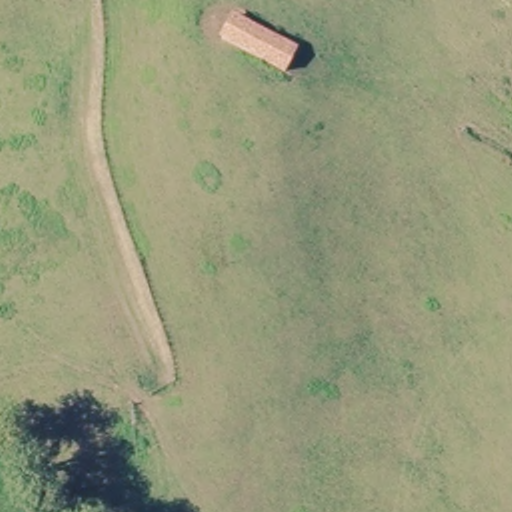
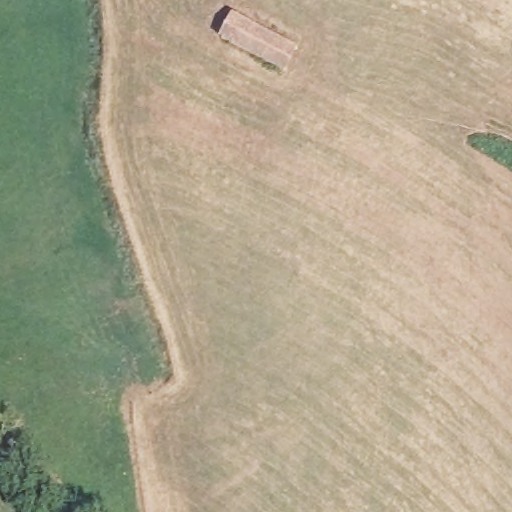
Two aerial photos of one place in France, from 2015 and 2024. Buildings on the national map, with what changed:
unchanged [(283,69),(229,36),(242,14),(296,48),(283,69)]

